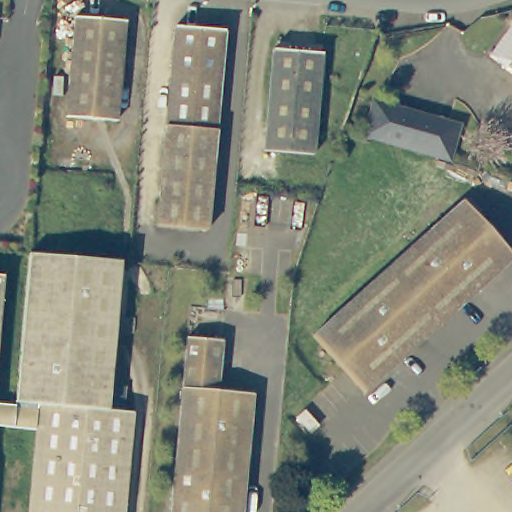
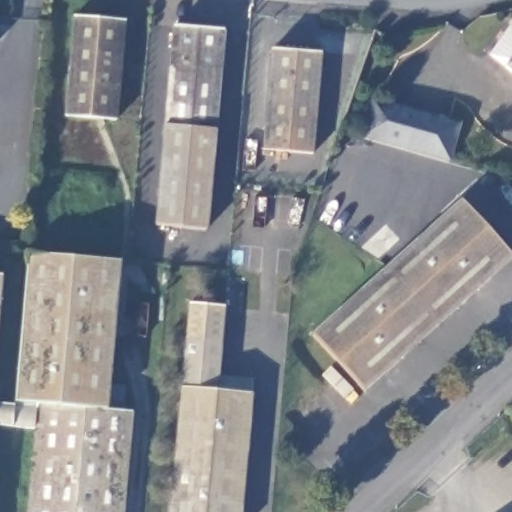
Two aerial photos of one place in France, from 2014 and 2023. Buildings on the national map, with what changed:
unchanged [(124,26),(115,125),(65,120),(75,21),(124,26)]
unchanged [(210,234),(159,230),(176,30),(226,33),(210,234)]
unchanged [(504,71),(502,72),(486,58),(511,30),(512,31),(512,79),(504,71)]
unchanged [(324,58),(316,156),(266,151),(275,53),(324,58)]
unchanged [(375,103),(462,127),(452,161),(366,137),(375,103)]
unchanged [(467,208),(512,261),(512,269),(441,328),(389,273),(467,208)]
unchanged [(121,264),(107,414),(131,416),(122,512),(32,512),(39,432),(13,430),(15,410),(29,256),(121,264)]
unchanged [(441,328),(362,394),(313,335),(389,273),(441,328)]
unchanged [(217,338),(214,389),(244,391),(236,512),(168,512),(180,335),(217,338)]

